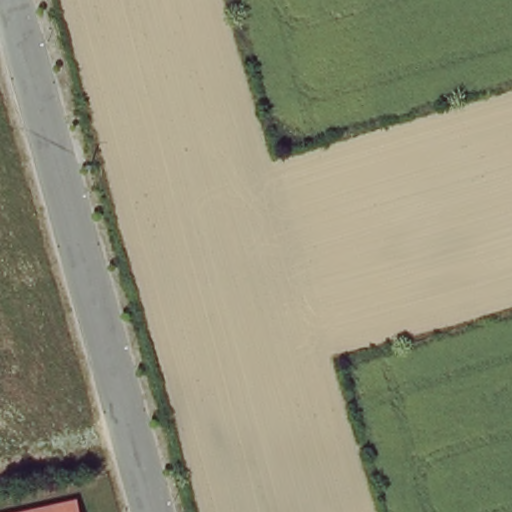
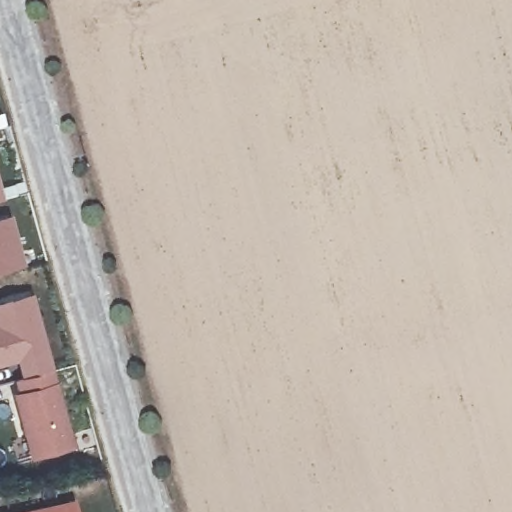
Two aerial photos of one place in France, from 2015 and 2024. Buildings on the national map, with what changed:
new [(4,200),(0,201),(0,187),(4,200)]
new [(12,214),(26,265),(0,273),(0,217),(12,214)]
new [(29,295),(50,377),(22,385),(16,361),(0,366),(0,303),(29,295)]
new [(20,401),(16,386),(50,377),(71,452),(32,463),(15,402),(20,401)]
unchanged [(79,512),(18,512),(76,500),(79,512)]

